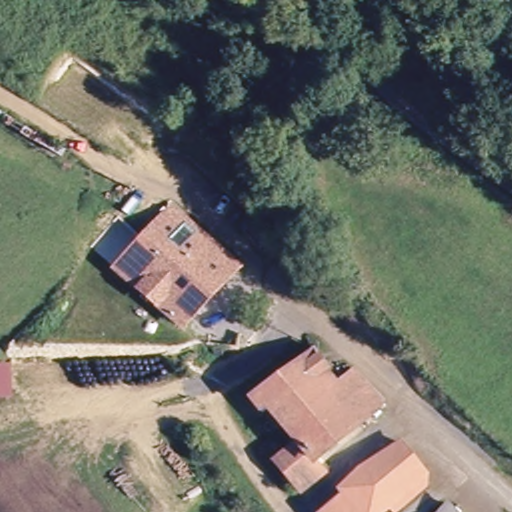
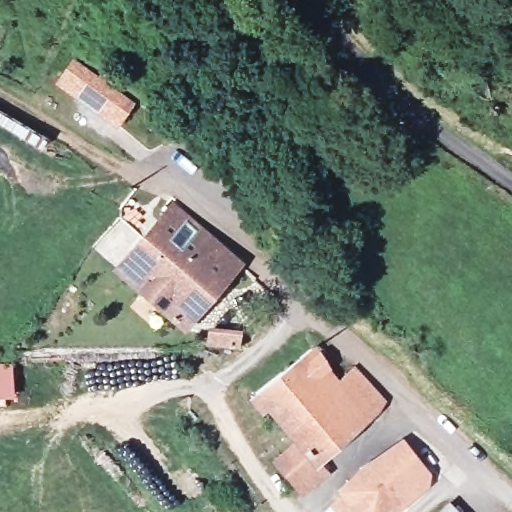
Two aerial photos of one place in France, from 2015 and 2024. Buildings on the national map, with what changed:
new [(54,82),(73,57),(136,102),(118,128),(54,82)]
unchanged [(45,150),(0,125),(0,111),(50,140),(45,150)]
unchanged [(186,323),(121,268),(175,205),(240,262),(186,323)]
unchanged [(281,459),(305,439),(276,402),(269,407),(257,393),(288,368),(319,343),(324,357),(339,377),(353,365),(388,396),(318,457),(324,465),(300,484),(281,459)]
unchanged [(13,397),(0,396),(0,356),(15,356),(13,397)]
unchanged [(431,480),(390,508),(387,503),(376,512),(326,512),(323,508),(343,488),(406,445),(431,480)]
unchanged [(352,480),(343,488),(330,472),(340,464),(352,480)]
new [(457,512),(437,512),(447,502),(457,512)]

